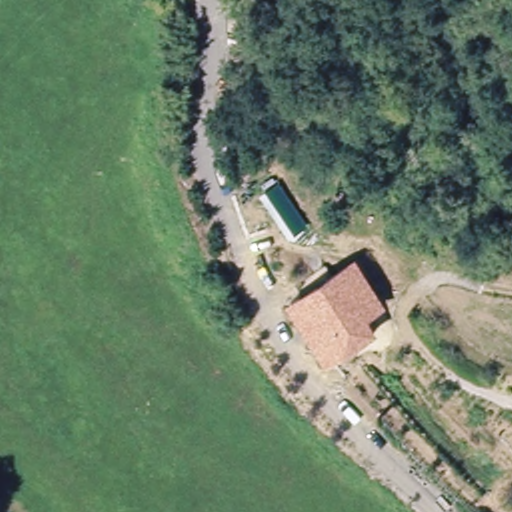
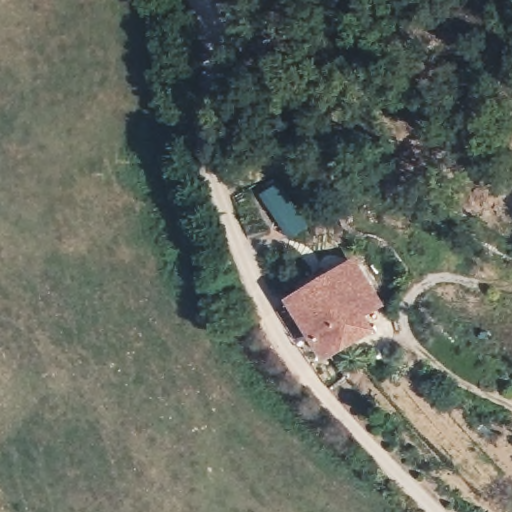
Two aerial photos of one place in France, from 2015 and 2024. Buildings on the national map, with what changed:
unchanged [(298,179),(323,223),(305,233),(281,189),(298,179)]
unchanged [(296,302),(360,267),(384,311),(366,321),(374,335),(327,361),(296,302)]

